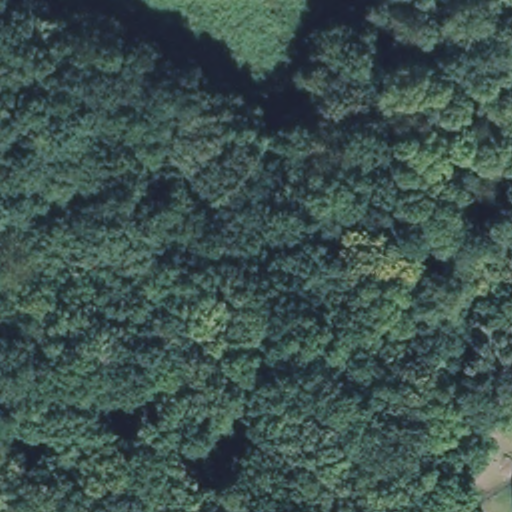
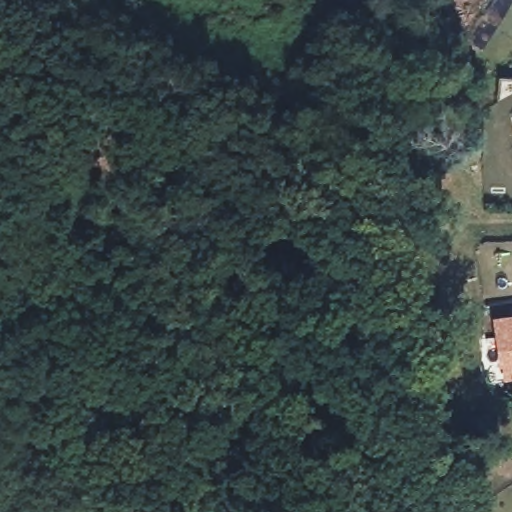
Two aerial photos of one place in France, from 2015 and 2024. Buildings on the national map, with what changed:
new [(499,361),(495,318),(512,316),(512,374),(501,376),(499,361)]

